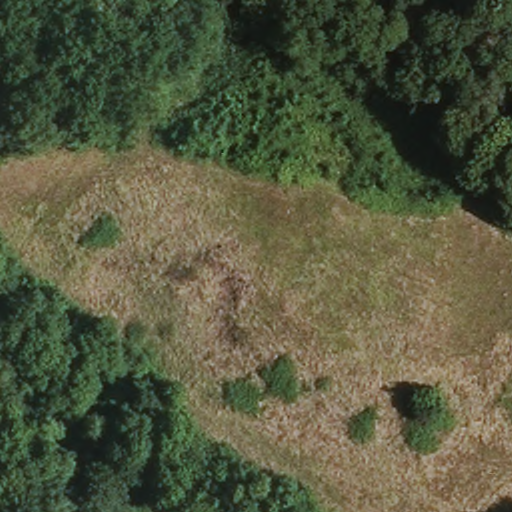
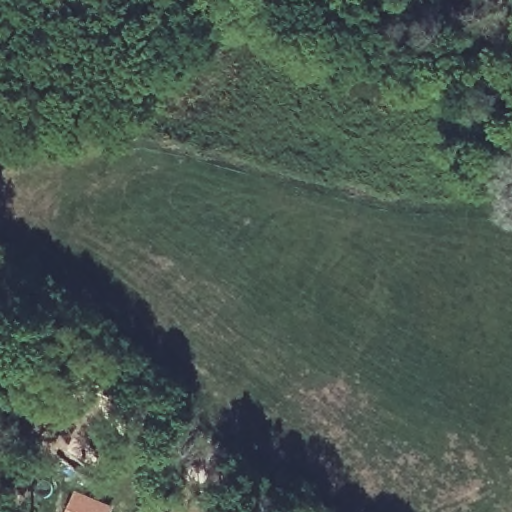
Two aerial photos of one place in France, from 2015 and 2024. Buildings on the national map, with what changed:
unchanged [(65,475),(44,458),(91,399),(113,416),(65,475)]
new [(114,506),(110,512),(63,512),(74,489),(114,506)]

